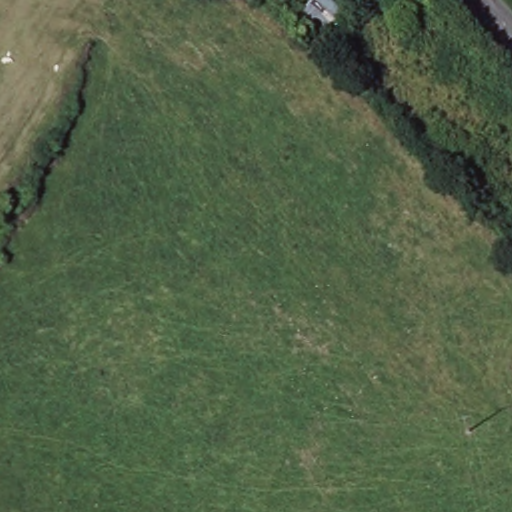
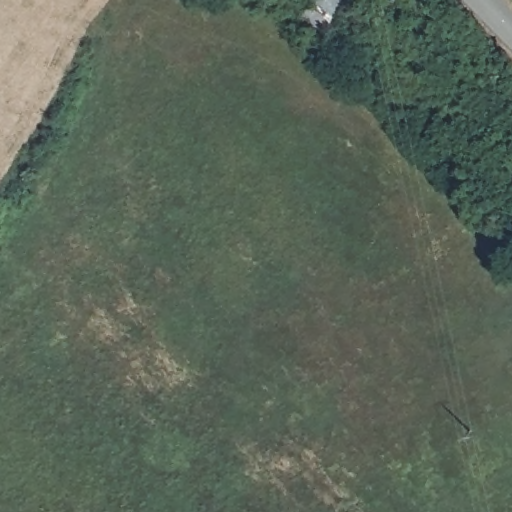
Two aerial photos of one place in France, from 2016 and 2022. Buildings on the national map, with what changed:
unchanged [(311,0),(352,0),(357,5),(323,42),(297,16),(311,0)]

